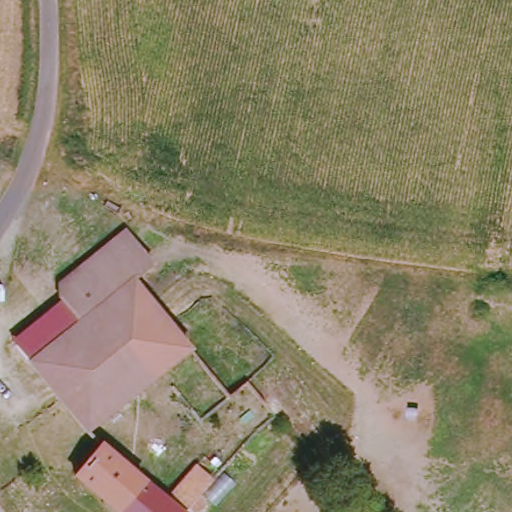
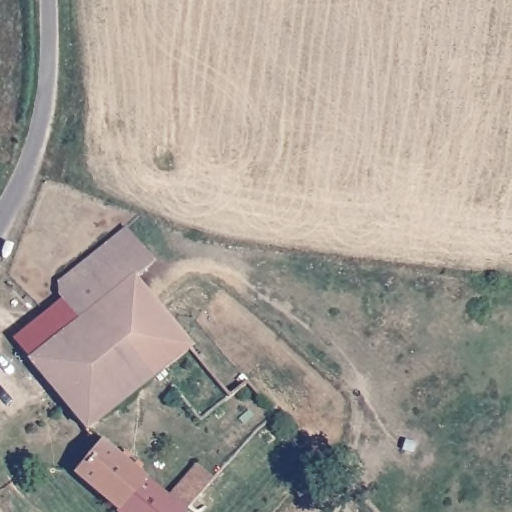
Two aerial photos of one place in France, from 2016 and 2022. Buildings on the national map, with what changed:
unchanged [(81,327),(63,303),(52,290),(127,231),(156,267),(140,281),(196,353),(87,440),(30,367),(81,327)]
unchanged [(12,345),(63,303),(81,327),(30,367),(12,345)]
unchanged [(203,512),(114,512),(71,477),(98,441),(165,493),(192,462),(211,480),(197,496),(209,505),(203,512)]

